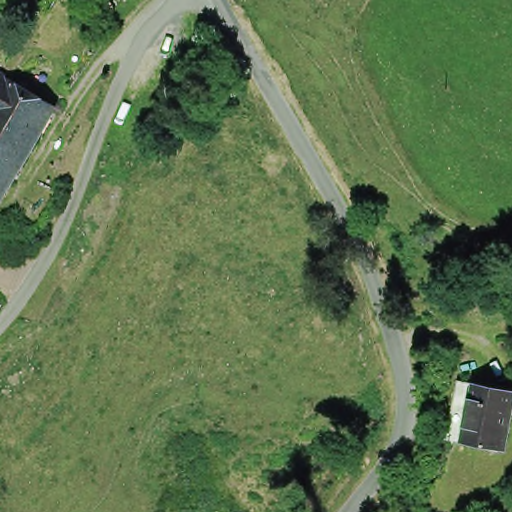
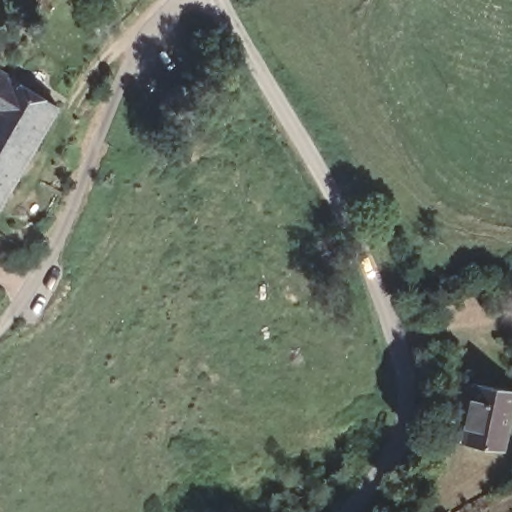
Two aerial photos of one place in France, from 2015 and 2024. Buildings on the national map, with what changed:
unchanged [(1,61),(65,102),(38,145),(0,122),(0,63),(1,61)]
unchanged [(2,203),(0,201),(0,122),(38,145),(2,203)]
unchanged [(455,432),(467,373),(479,376),(512,382),(512,425),(508,441),(470,434),(455,432)]

